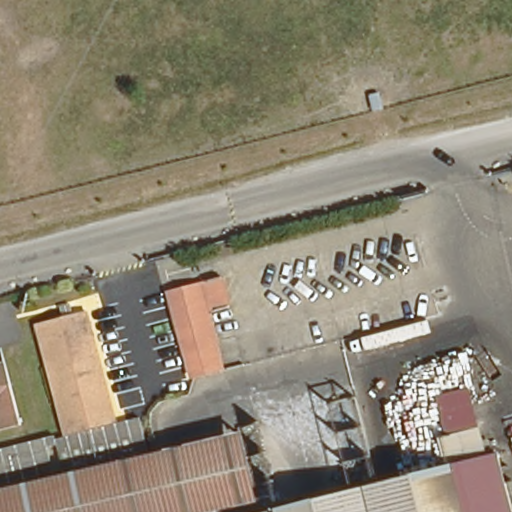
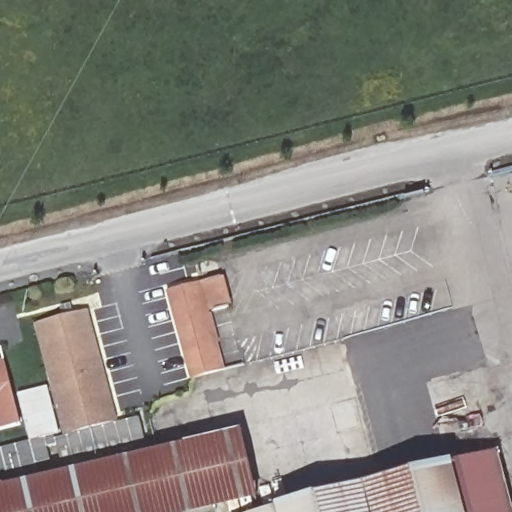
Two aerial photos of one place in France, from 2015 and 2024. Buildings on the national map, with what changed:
unchanged [(172,286),(224,273),(234,306),(209,312),(223,366),(197,373),(172,286)]
unchanged [(90,312),(117,421),(68,432),(41,325),(90,312)]
unchanged [(5,356),(22,421),(0,426),(0,358),(5,356)]
unchanged [(512,479),(512,512),(470,512),(459,468),(451,433),(498,423),(512,479)]
unchanged [(239,433),(257,501),(209,512),(0,512),(0,490),(239,433)]
unchanged [(293,512),(292,506),(459,468),(470,512),(293,512)]
unchanged [(293,512),(266,512),(292,506),(293,512)]

